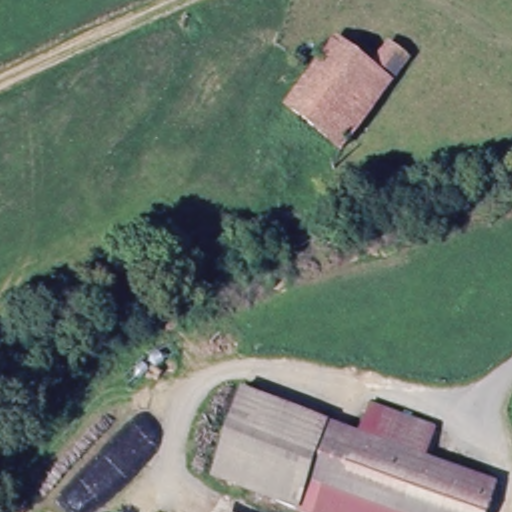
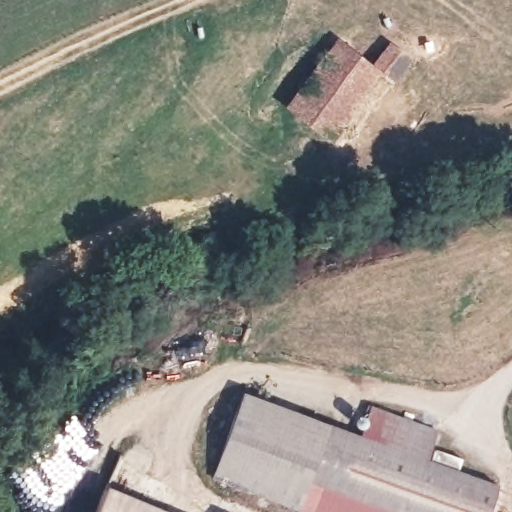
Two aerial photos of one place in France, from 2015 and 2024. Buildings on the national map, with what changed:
unchanged [(353,143),(350,147),(343,141),(296,107),(345,42),(378,65),(395,45),(414,59),(398,81),(363,130),(353,143)]
unchanged [(427,460),(496,486),(487,512),(376,512),(308,487),(300,509),(215,477),(241,407),(246,393),(256,397),(365,437),(375,408),(437,432),(427,460)]
new [(172,512),(96,512),(107,485),(172,512)]
unchanged [(376,512),(308,512),(300,509),(308,487),(376,512)]

